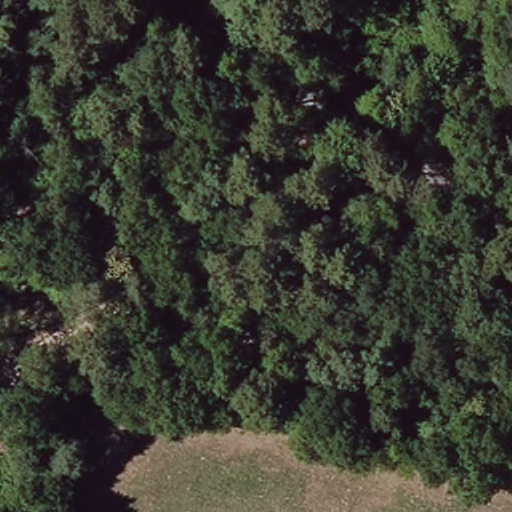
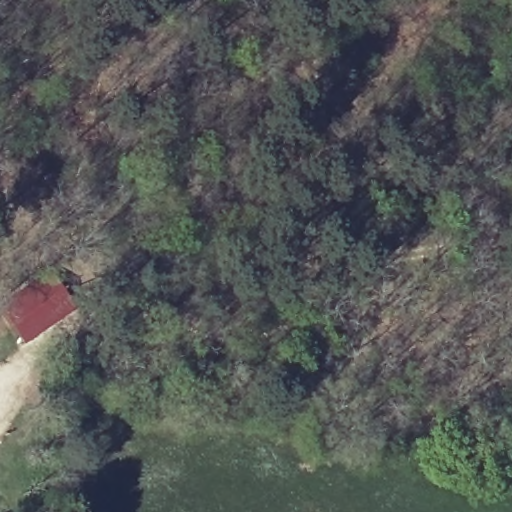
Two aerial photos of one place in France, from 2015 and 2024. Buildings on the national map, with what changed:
new [(47,271),(72,311),(23,345),(0,312),(0,303),(47,271)]

